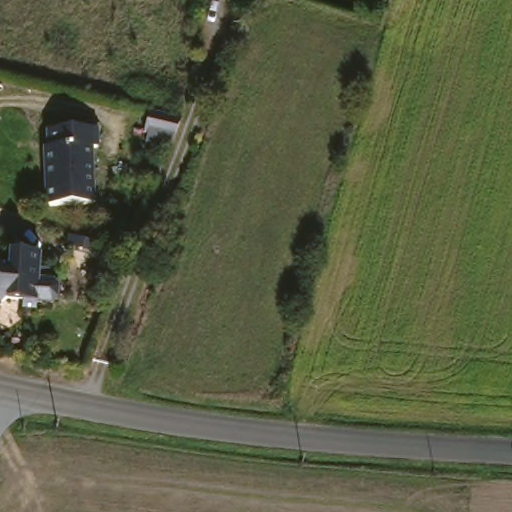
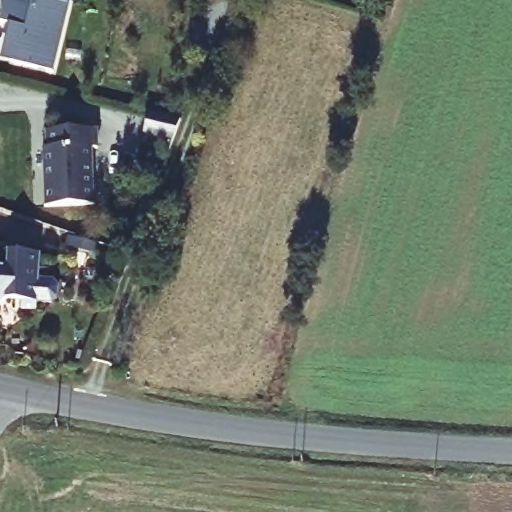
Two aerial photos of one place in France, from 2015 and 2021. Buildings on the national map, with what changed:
new [(70,1),(53,74),(10,64),(13,52),(4,50),(9,26),(0,24),(0,19),(5,0),(64,0),(70,1)]
unchanged [(149,135),(145,134),(150,112),(183,120),(174,141),(171,150),(148,145),(149,135)]
unchanged [(93,136),(94,155),(86,155),(88,212),(42,213),(40,154),(43,154),(43,137),(93,136)]
unchanged [(59,282),(58,295),(53,294),(52,299),(36,298),(36,306),(23,305),(23,297),(6,295),(0,301),(0,262),(9,262),(9,248),(40,251),(39,276),(54,277),(54,282),(59,282)]

